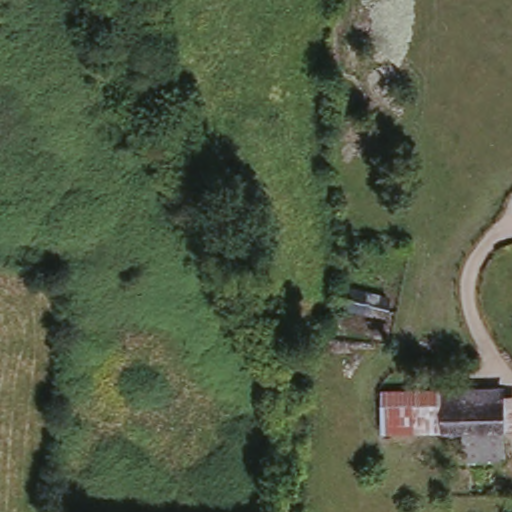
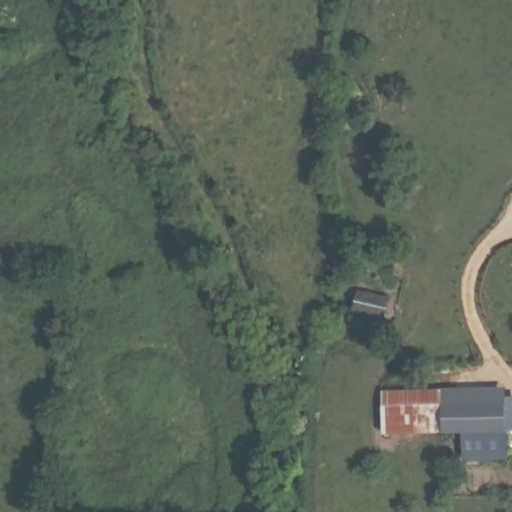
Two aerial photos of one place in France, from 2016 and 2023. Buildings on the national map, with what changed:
unchanged [(350,266),(395,284),(389,299),(345,281),(350,266)]
unchanged [(512,428),(452,427),(394,424),(396,397),(512,401),(512,402),(512,428)]
unchanged [(454,453),(452,427),(512,428),(512,453),(454,453)]

